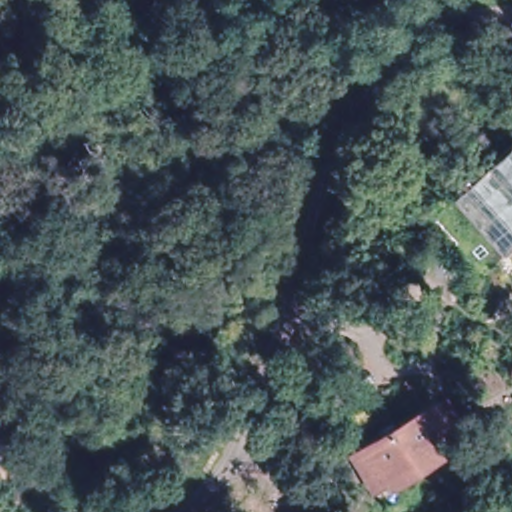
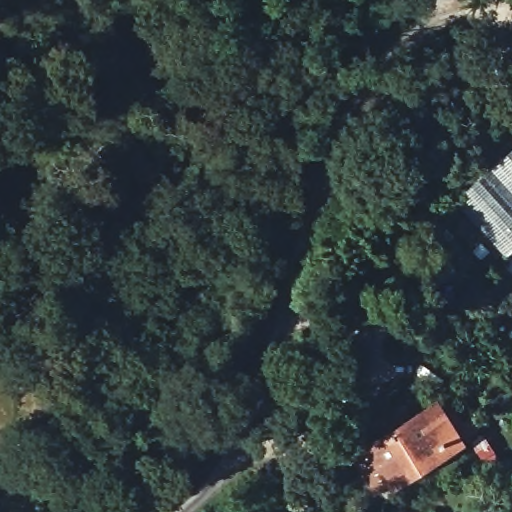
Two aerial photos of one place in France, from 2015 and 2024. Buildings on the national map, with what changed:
unchanged [(499,290),(476,310),(458,284),(483,268),(499,290)]
unchanged [(505,343),(512,337),(512,353),(505,343)]
unchanged [(428,454),(408,467),(411,471),(393,482),(390,477),(375,486),(355,454),(424,410),(437,402),(460,439),(448,447),(430,458),(428,454)]

